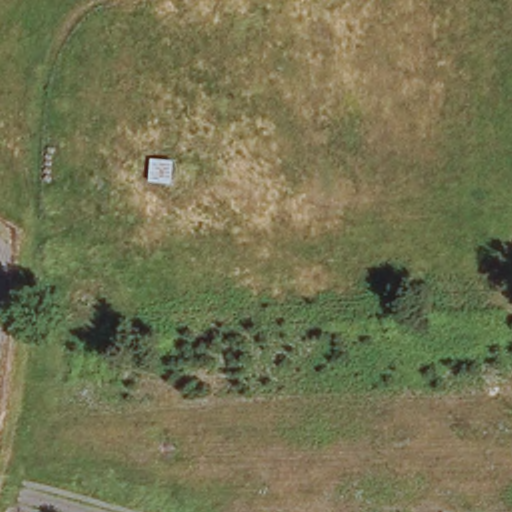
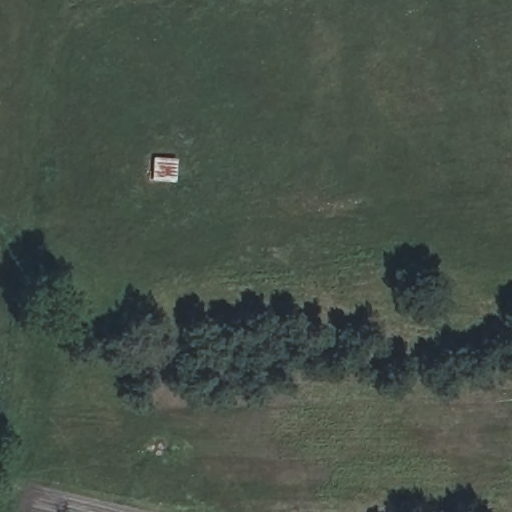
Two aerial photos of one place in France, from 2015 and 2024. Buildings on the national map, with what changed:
unchanged [(177,156),(176,183),(151,183),(150,157),(177,156)]

